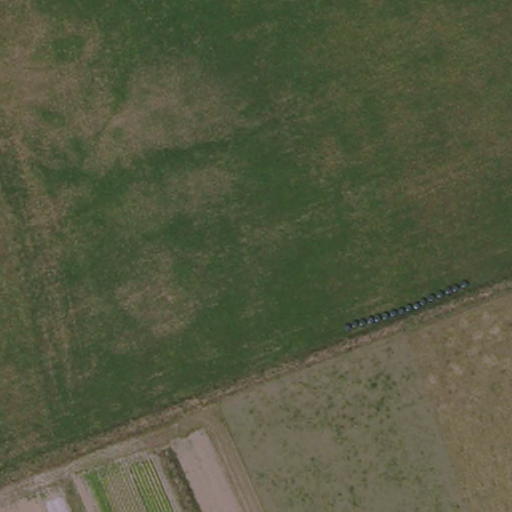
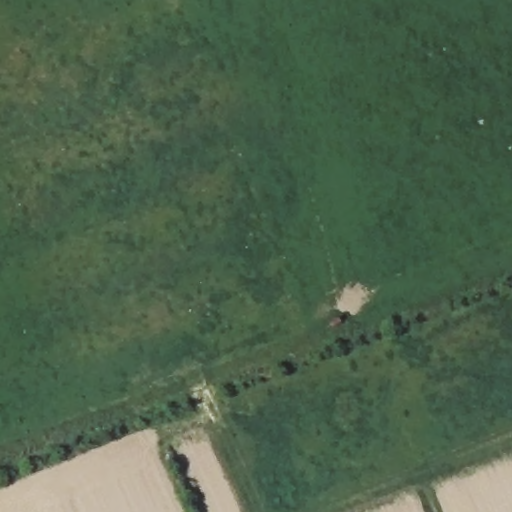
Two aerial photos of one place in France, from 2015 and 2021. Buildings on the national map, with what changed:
[]

